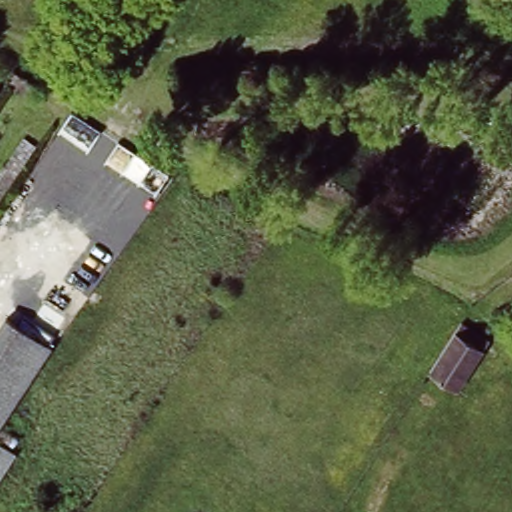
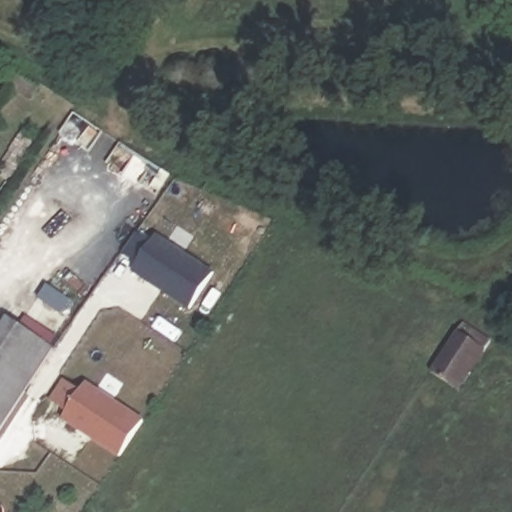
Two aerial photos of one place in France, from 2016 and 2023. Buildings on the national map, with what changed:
new [(190,310),(130,274),(137,264),(121,255),(136,232),(152,240),(155,235),(212,273),(190,310)]
unchanged [(467,313),(497,328),(467,384),(436,368),(467,313)]
unchanged [(0,324),(5,318),(51,349),(0,424),(0,324)]
new [(120,460),(60,422),(65,415),(47,404),(62,379),(79,391),(84,383),(142,421),(120,460)]
demolished [(0,476),(0,442),(15,453),(0,476)]

